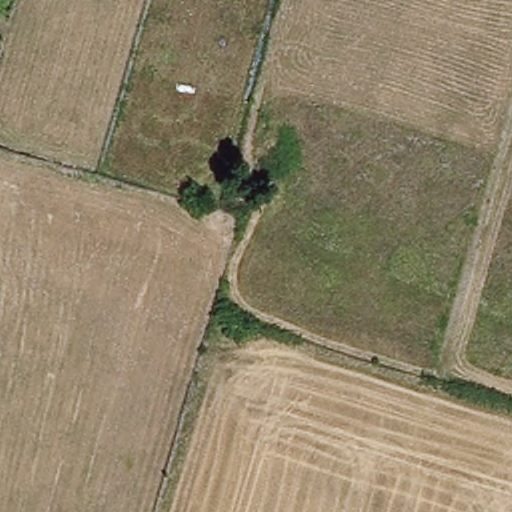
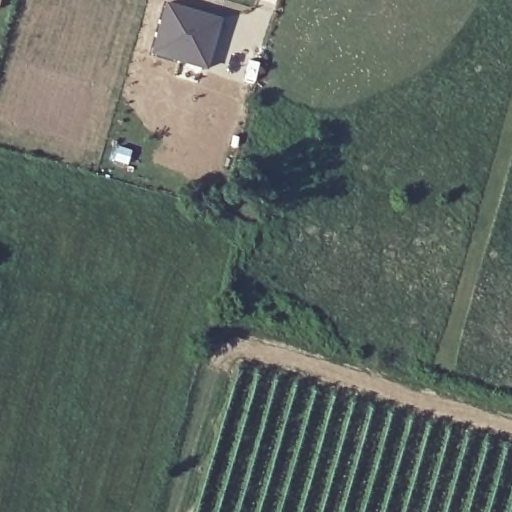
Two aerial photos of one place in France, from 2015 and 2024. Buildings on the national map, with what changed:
new [(164,1),(222,17),(207,70),(149,54),(164,1)]

